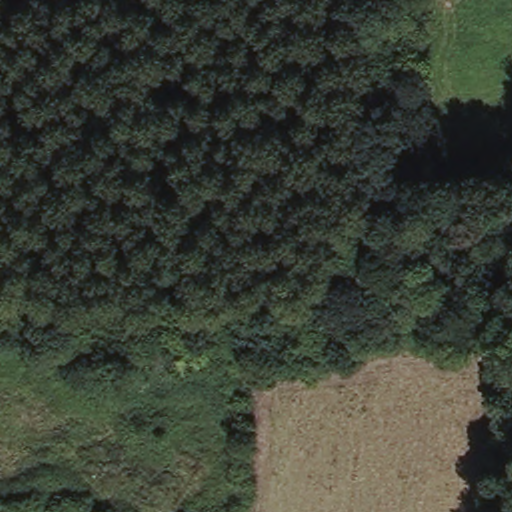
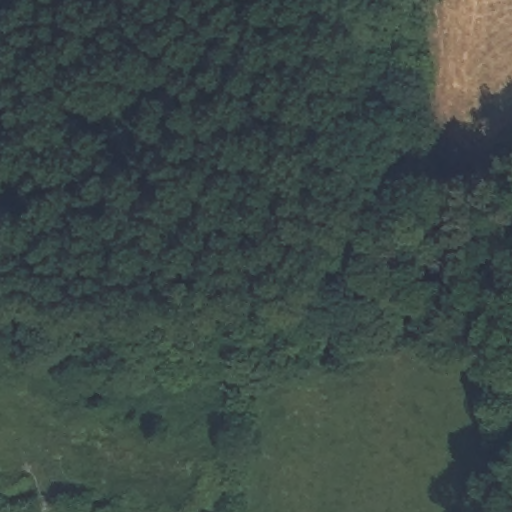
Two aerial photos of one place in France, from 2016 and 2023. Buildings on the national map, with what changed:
unchanged [(467,241),(467,255),(455,255),(456,239),(467,241)]

